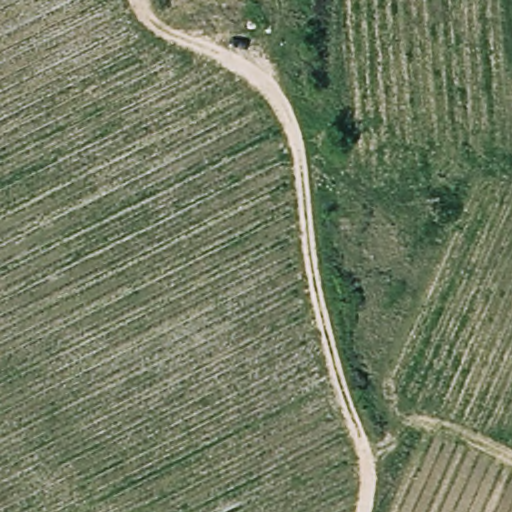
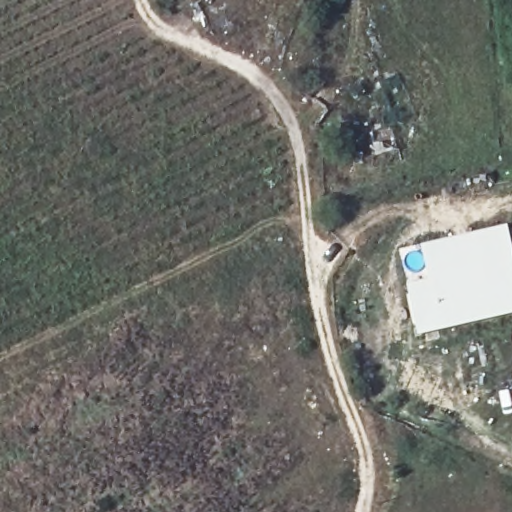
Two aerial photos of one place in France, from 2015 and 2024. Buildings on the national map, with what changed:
new [(421,338),(409,285),(430,280),(422,246),(509,226),(512,237),(512,318),(421,338)]

